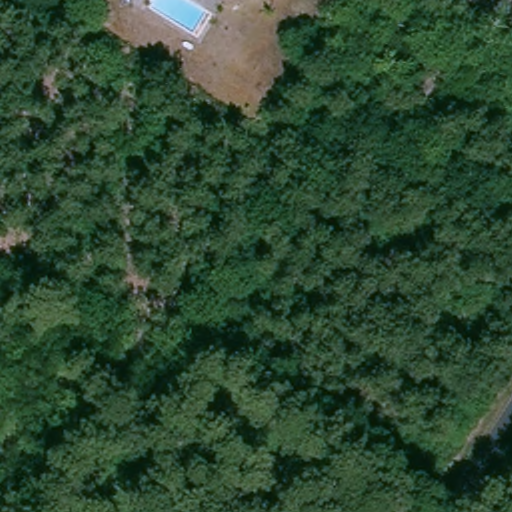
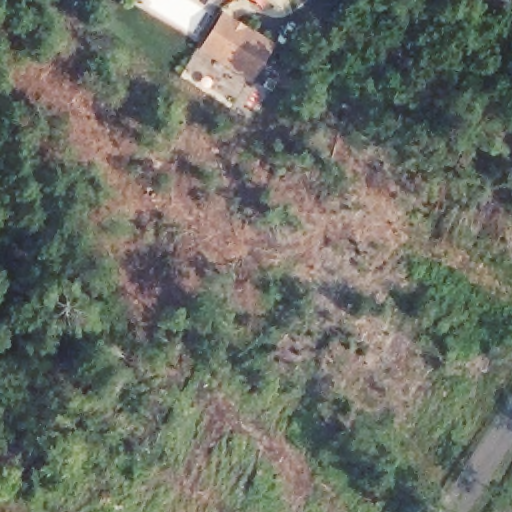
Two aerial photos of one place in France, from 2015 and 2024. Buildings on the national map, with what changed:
new [(276,43),(252,82),(199,48),(222,9),(276,43)]

